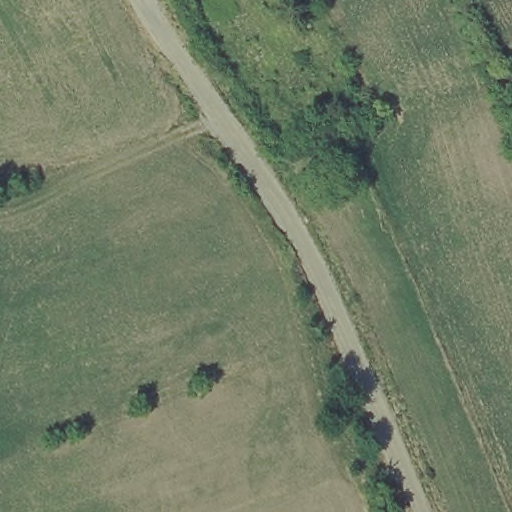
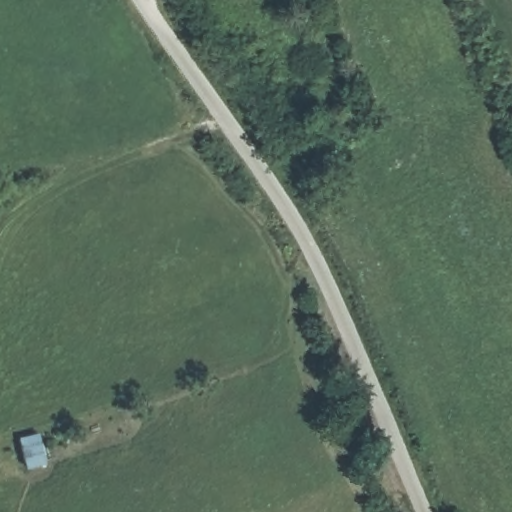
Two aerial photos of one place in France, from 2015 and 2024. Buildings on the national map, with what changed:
[]

